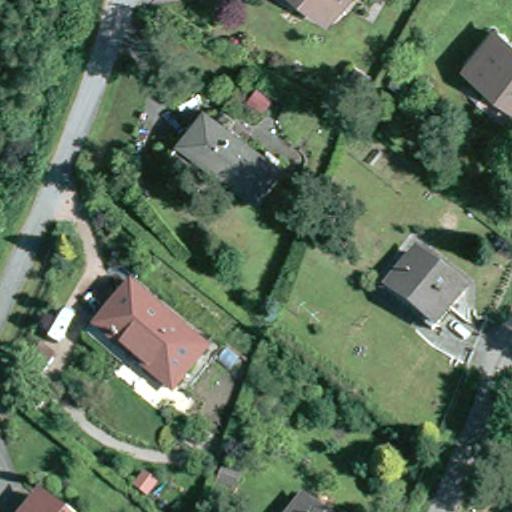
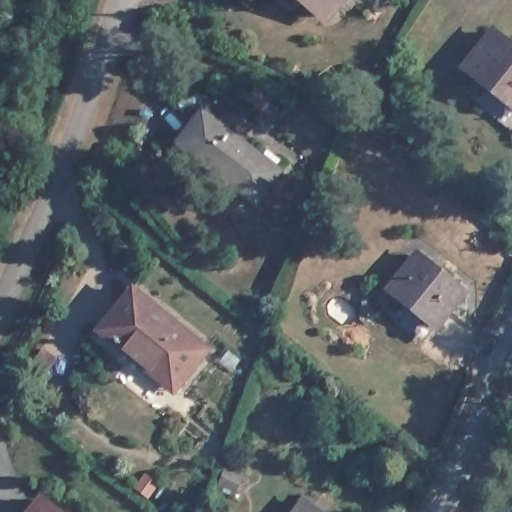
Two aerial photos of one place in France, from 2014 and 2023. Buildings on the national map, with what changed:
unchanged [(305,0),(340,0),(325,17),(305,0)]
unchanged [(500,28),(512,38),(512,122),(483,99),(496,82),(471,62),(500,28)]
unchanged [(367,79),(359,90),(347,81),(356,70),(367,79)]
unchanged [(284,176),(260,207),(185,148),(208,118),(284,176)]
unchanged [(417,255),(465,292),(438,326),(392,289),(417,255)]
unchanged [(133,356),(100,329),(130,293),(134,289),(161,310),(210,349),(180,386),(176,390),(133,356)]
unchanged [(45,500),(58,512),(35,512),(45,500)]
unchanged [(305,501),(319,512),(297,512),(305,501)]

